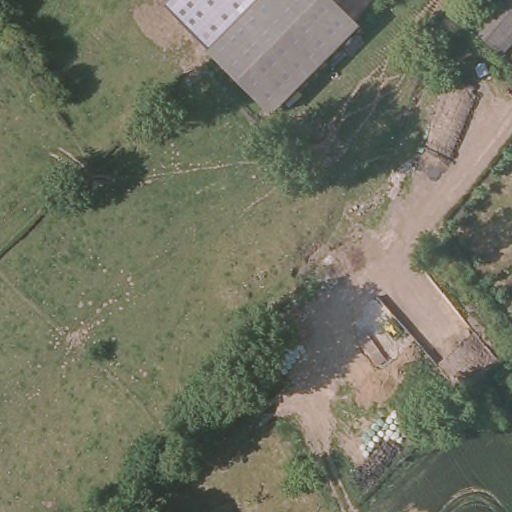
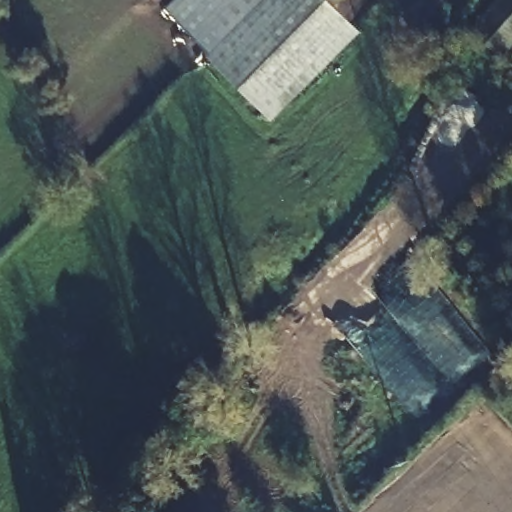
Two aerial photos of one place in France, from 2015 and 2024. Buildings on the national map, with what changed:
unchanged [(173,0),(253,0),(235,17),(213,40),(209,44),(168,5),(173,0)]
unchanged [(253,0),(328,0),(355,27),(269,112),(205,47),(235,17),(253,0)]
unchanged [(477,32),(467,24),(470,20),(486,0),(512,0),(512,51),(505,59),(477,32)]

